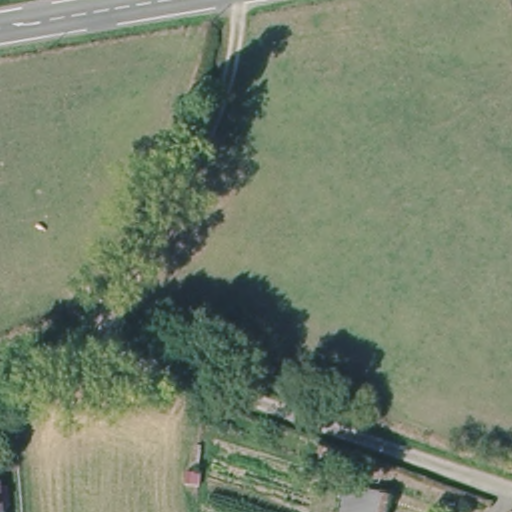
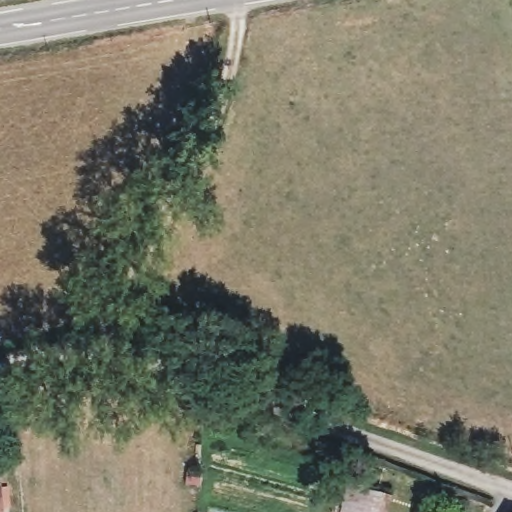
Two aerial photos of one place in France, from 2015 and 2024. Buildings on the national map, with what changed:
unchanged [(344,472),(392,483),(384,512),(333,512),(344,472)]
unchanged [(0,485),(3,512),(0,512),(0,485)]
unchanged [(509,506),(512,508),(512,512),(505,512),(509,506)]

